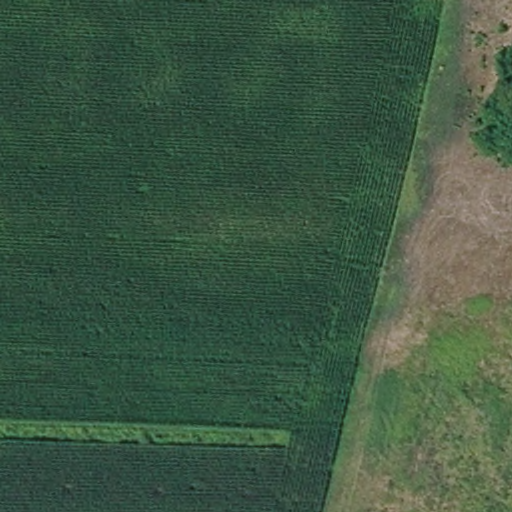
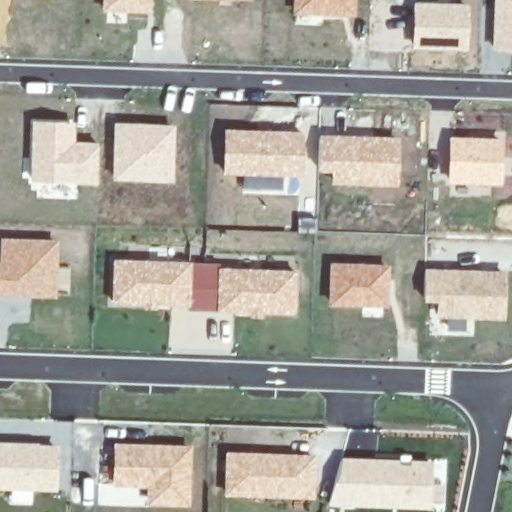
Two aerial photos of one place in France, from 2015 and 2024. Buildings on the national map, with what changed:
new [(250,1),(203,0),(250,0),(250,1)]
new [(293,0),(355,0),(355,16),(292,15),(293,0)]
new [(492,50),(493,0),(512,0),(512,51),(492,50)]
new [(468,4),(467,51),(411,49),(412,3),(468,4)]
new [(75,122),(74,141),(98,143),(97,184),(30,181),(32,121),(75,122)]
new [(114,122),(175,125),(174,183),(112,181),(114,122)]
new [(222,175),(223,129),(304,132),(302,177),(222,175)]
new [(332,184),(333,173),(317,173),(319,135),(399,138),(397,186),(332,184)]
new [(503,138),(502,186),(447,184),(448,137),(503,138)]
new [(57,240),(56,298),(0,296),(0,246),(1,238),(57,240)]
new [(188,310),(187,306),(157,305),(157,310),(142,310),(142,304),(111,303),(112,259),(192,262),(192,263),(221,264),(220,268),(297,271),(295,315),(263,313),(263,319),(249,318),(249,313),(217,312),(188,310)]
new [(329,263),(390,265),(388,308),(327,307),(329,263)]
new [(506,271),(504,319),(436,317),(436,303),(423,302),(425,269),(506,271)]
new [(225,451),(316,455),(313,499),(224,496),(225,451)]
new [(339,477),(340,458),(432,461),(432,491),(427,491),(427,509),(332,506),(333,476),(339,477)]

